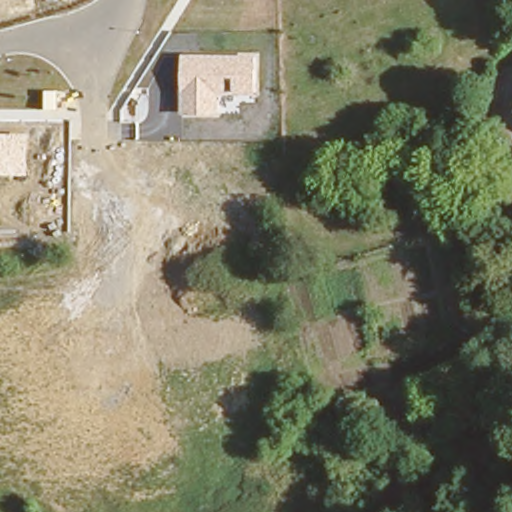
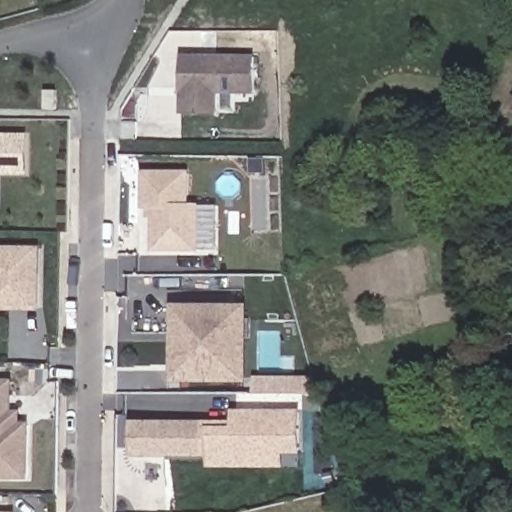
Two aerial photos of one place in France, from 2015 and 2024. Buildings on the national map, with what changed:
unchanged [(219,114),(181,115),(181,55),(255,55),(255,93),(218,94),(219,114)]
unchanged [(0,134),(29,134),(29,175),(0,175),(0,134)]
new [(152,252),(152,218),(146,217),(146,209),(141,209),(142,170),(191,171),(191,204),(201,204),(200,252),(152,252)]
new [(0,246),(42,246),(42,310),(0,310),(0,246)]
new [(248,304),(247,382),(172,382),(172,303),(248,304)]
new [(0,379),(15,379),(15,410),(24,410),(23,422),(32,422),(31,479),(0,478),(0,379)]
new [(285,453),(284,467),(210,467),(210,457),(131,456),(132,420),(232,420),(232,407),(300,407),(301,453),(285,453)]

